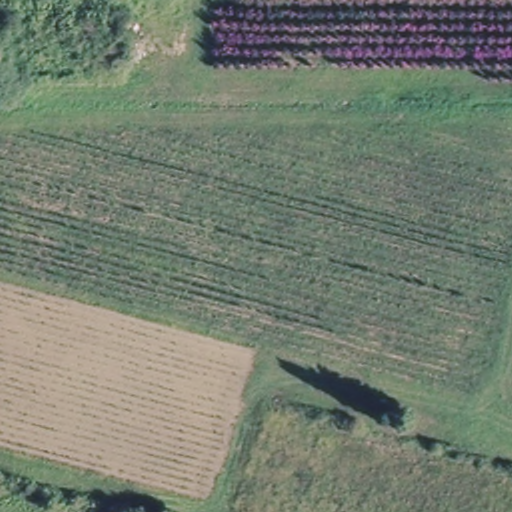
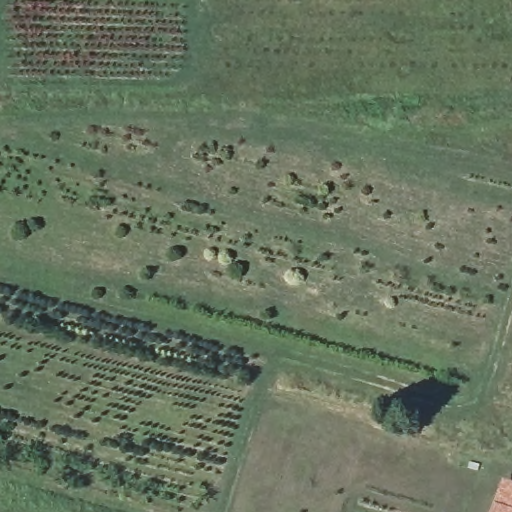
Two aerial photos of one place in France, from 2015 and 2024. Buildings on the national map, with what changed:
new [(512,483),(512,512),(492,512),(503,480),(512,483)]

